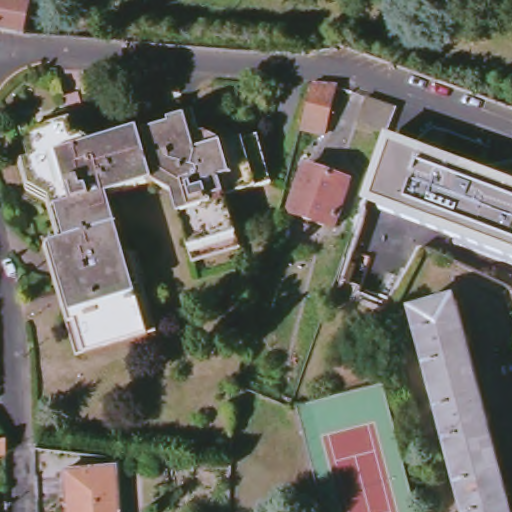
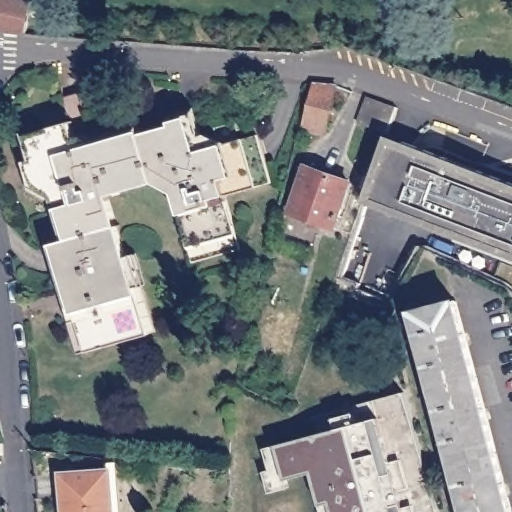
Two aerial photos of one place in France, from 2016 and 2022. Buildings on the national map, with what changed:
unchanged [(0,31),(0,0),(32,0),(25,35),(0,31)]
unchanged [(310,86),(312,84),(336,86),(320,137),(299,131),(310,86)]
unchanged [(53,244),(67,240),(53,190),(32,177),(20,132),(67,120),(60,92),(78,88),(85,110),(133,97),(144,130),(187,119),(190,127),(252,111),(272,184),(226,197),(237,243),(190,256),(172,195),(154,185),(109,199),(147,336),(82,353),(53,244)]
unchanged [(387,129),(357,118),(365,95),(395,105),(387,129)]
unchanged [(512,257),(362,199),(385,134),(512,181),(512,257)]
unchanged [(289,214),(307,169),(350,186),(332,230),(289,214)]
unchanged [(455,300),(511,512),(463,512),(410,312),(455,300)]
new [(322,512),(320,505),(313,474),(285,480),(289,489),(268,495),(262,472),(269,471),(263,449),(277,446),(317,435),(313,416),(405,392),(435,512),(322,512)]
demolished [(3,441),(4,456),(0,457),(0,442),(3,441)]
unchanged [(112,470),(114,512),(64,512),(62,472),(112,470)]

